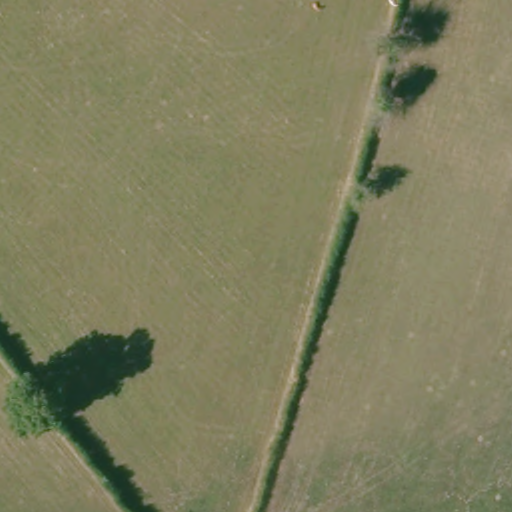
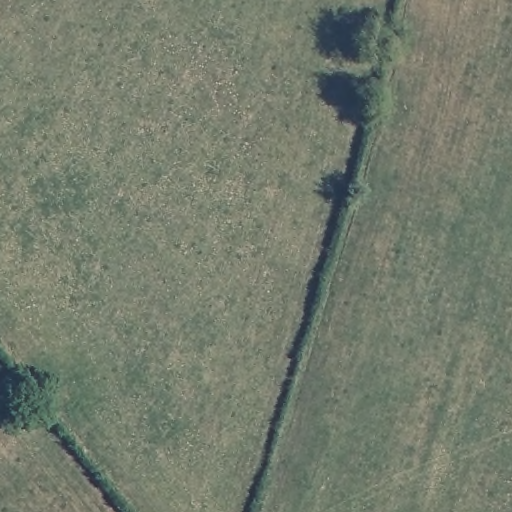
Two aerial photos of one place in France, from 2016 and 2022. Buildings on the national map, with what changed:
[]

